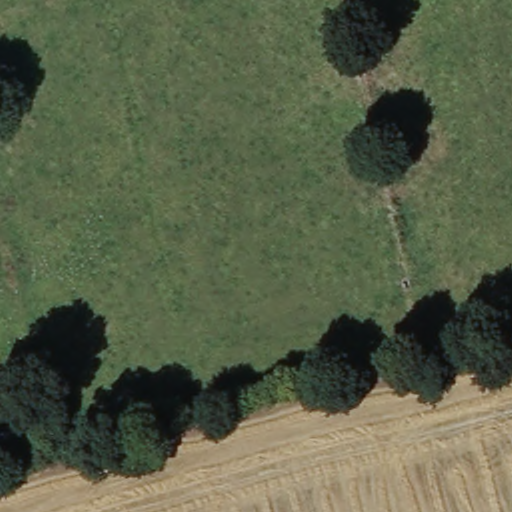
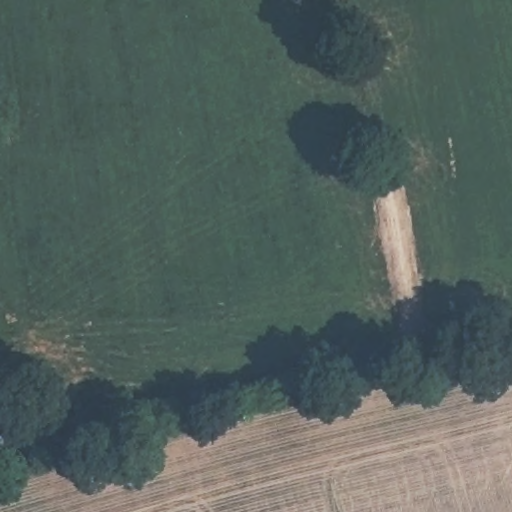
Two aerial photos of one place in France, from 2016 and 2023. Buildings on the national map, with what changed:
unchanged [(31,429),(36,457),(0,468),(0,437),(31,429)]

